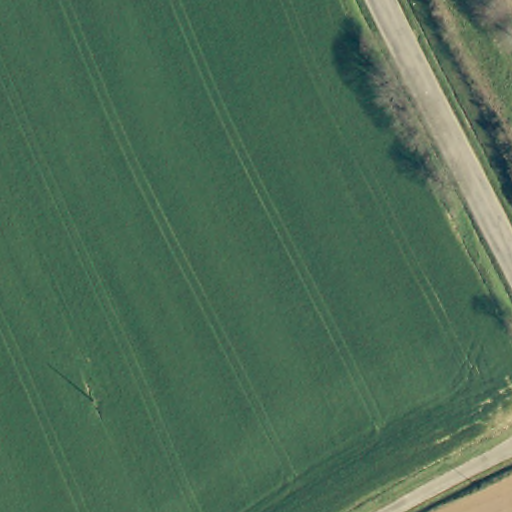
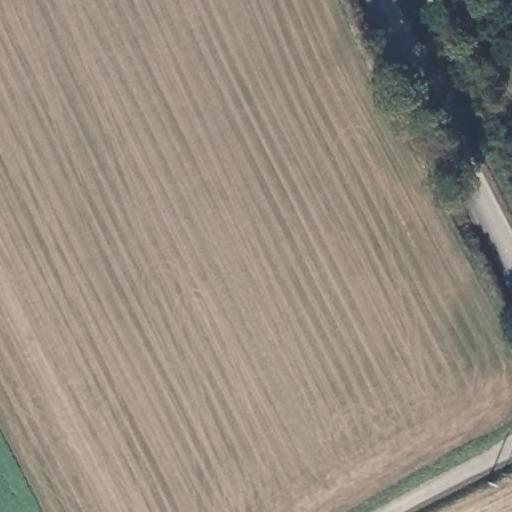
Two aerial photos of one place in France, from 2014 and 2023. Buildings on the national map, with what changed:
[]

